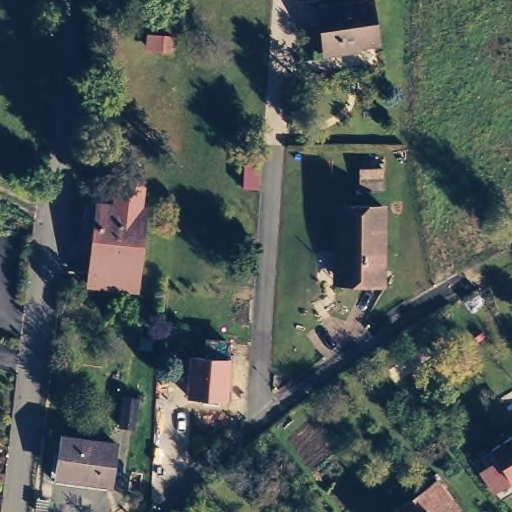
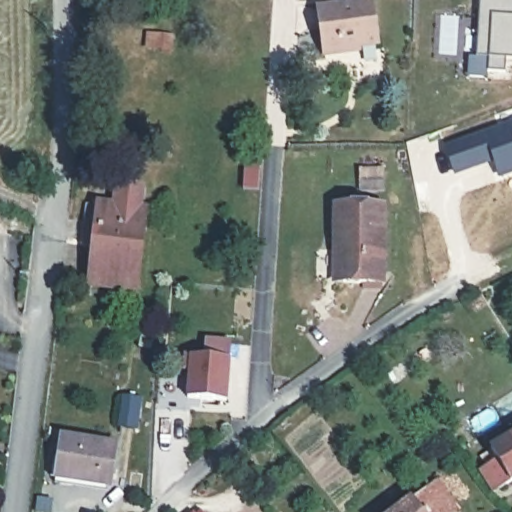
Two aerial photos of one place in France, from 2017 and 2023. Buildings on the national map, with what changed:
new [(512,0),(512,57),(505,57),(505,71),(487,70),(489,56),(477,55),(481,0),(512,0)]
unchanged [(370,1),(375,44),(321,52),(317,10),(370,1)]
new [(495,161),(457,175),(447,148),(512,125),(512,171),(500,175),(495,161)]
demolished [(512,154),(472,176),(462,159),(512,133),(512,154)]
unchanged [(387,196),(384,278),(330,275),(335,194),(356,193),(360,163),(385,164),(387,196)]
unchanged [(87,276),(98,202),(145,208),(135,283),(87,276)]
unchanged [(227,293),(247,295),(245,310),(226,308),(227,293)]
unchanged [(190,328),(228,332),(220,389),(181,386),(190,328)]
unchanged [(487,443),(512,428),(512,471),(491,485),(478,466),(495,455),(487,443)]
unchanged [(60,433),(64,431),(114,438),(108,481),(53,474),(60,433)]
unchanged [(434,475),(455,503),(443,512),(385,512),(434,475)]
unchanged [(191,511),(193,512),(190,512),(191,511)]

